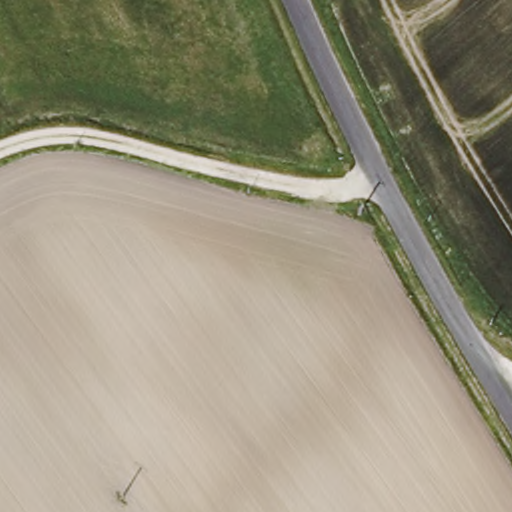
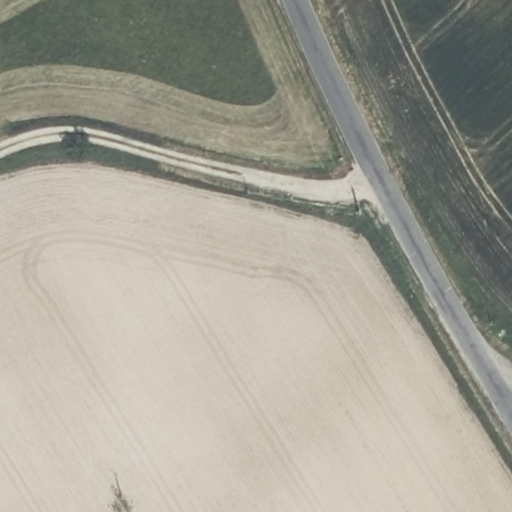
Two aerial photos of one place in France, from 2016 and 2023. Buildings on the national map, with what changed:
[]

